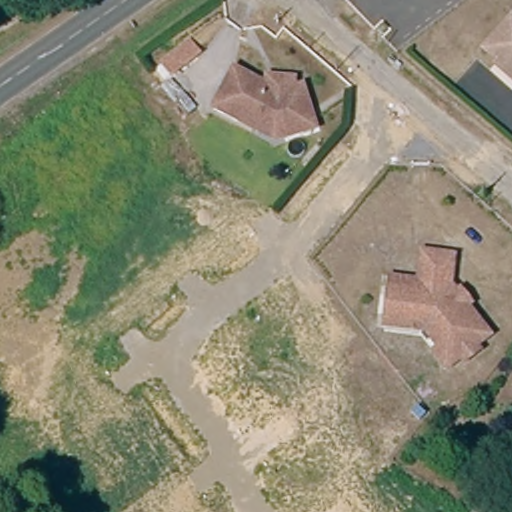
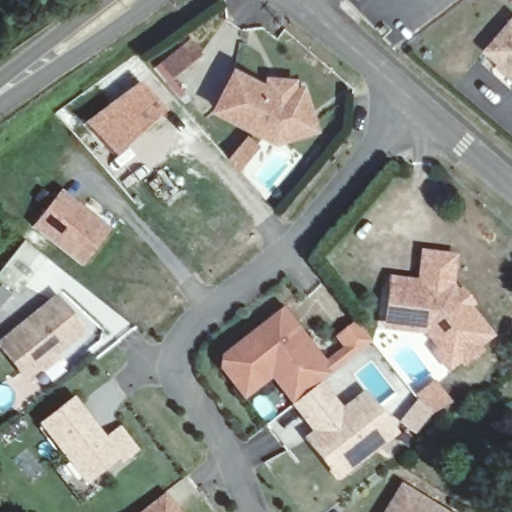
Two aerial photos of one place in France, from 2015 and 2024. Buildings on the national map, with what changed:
unchanged [(503,0),(512,0),(508,4),(503,0)]
unchanged [(484,58),(511,27),(512,28),(512,83),(484,58)]
unchanged [(181,72),(169,59),(191,41),(202,54),(181,72)]
unchanged [(257,136),(213,114),(232,75),(278,99),(300,91),(314,132),(284,143),(275,145),(257,136)]
new [(141,81),(166,111),(114,159),(83,124),(141,81)]
new [(110,228),(82,263),(32,227),(61,190),(110,228)]
new [(46,259),(19,295),(0,281),(0,270),(21,240),(46,259)]
unchanged [(387,324),(391,293),(392,282),(422,285),(426,254),(456,259),(453,287),(460,297),(456,300),(464,312),(475,325),(479,322),(492,338),(478,349),(482,354),(467,365),(463,361),(449,371),(436,355),(440,352),(428,335),(386,330),(387,324)]
new [(56,363),(45,371),(38,371),(24,382),(0,352),(0,338),(56,293),(87,331),(58,354),(56,363)]
new [(337,481),(302,438),(312,430),(271,378),(242,399),(218,367),(221,353),(284,307),(325,359),(342,347),(334,335),(354,319),(372,341),(322,381),(341,407),(364,389),(399,433),(337,481)]
new [(435,380),(449,398),(430,408),(419,393),(435,380)]
new [(75,399),(121,457),(88,482),(43,424),(75,399)]
new [(404,486),(447,512),(388,512),(404,486)]
new [(166,493),(177,506),(168,512),(142,512),(166,493)]
unchanged [(182,512),(168,512),(177,506),(182,512)]

